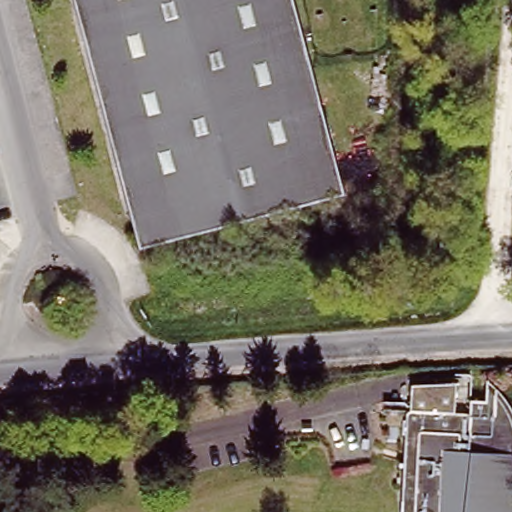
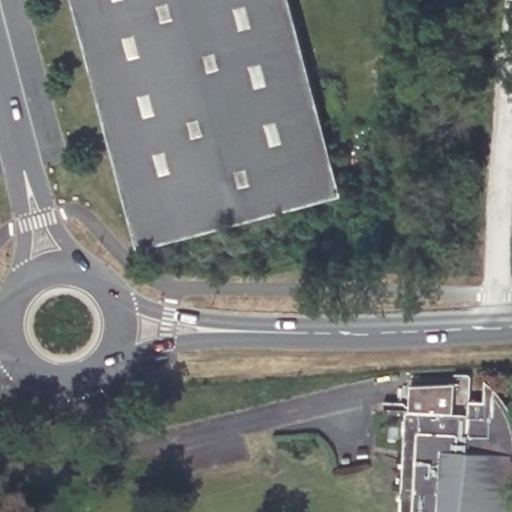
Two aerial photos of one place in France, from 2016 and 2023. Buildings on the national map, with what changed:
unchanged [(75,0),(289,0),(340,197),(145,252),(75,0)]
unchanged [(401,498),(405,405),(410,405),(410,385),(454,384),(454,373),(472,373),(471,402),(485,403),(492,403),(490,451),(490,453),(512,454),(512,512),(400,512),(401,498)]
unchanged [(485,403),(485,380),(503,395),(512,413),(512,454),(490,453),(492,403),(485,403)]

